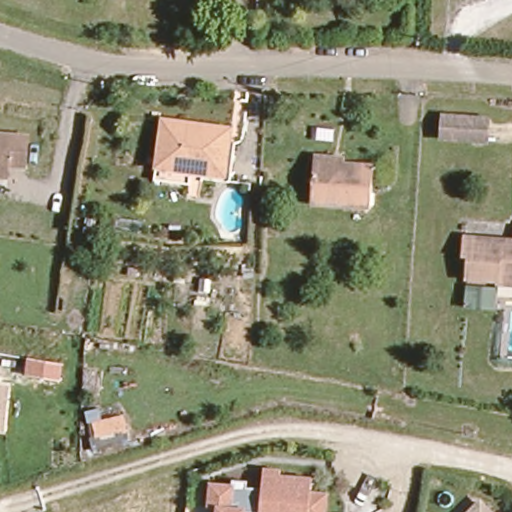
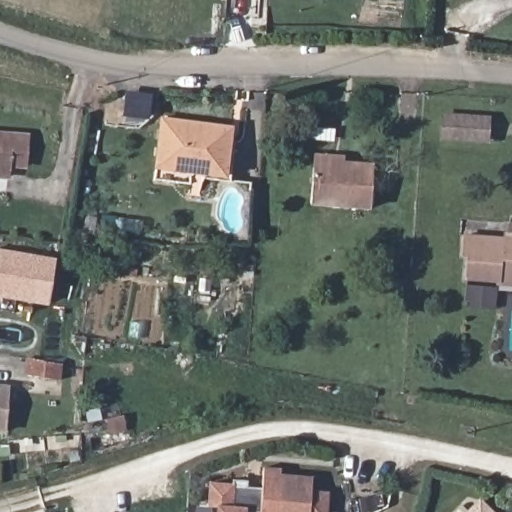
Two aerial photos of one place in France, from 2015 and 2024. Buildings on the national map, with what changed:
unchanged [(442,140),(444,117),(488,121),(486,145),(442,140)]
unchanged [(159,159),(164,122),(230,131),(225,175),(202,171),(158,165),(159,159)]
unchanged [(6,174),(0,172),(0,131),(30,135),(26,165),(8,162),(6,174)]
unchanged [(311,165),(312,157),(340,161),(339,167),(372,171),(366,211),(307,202),(311,165)]
unchanged [(460,231),(512,237),(512,286),(463,280),(460,231)]
new [(0,295),(0,251),(57,263),(49,306),(0,295)]
unchanged [(512,286),(512,301),(495,299),(493,311),(462,309),(463,280),(512,286)]
unchanged [(5,432),(0,431),(0,387),(10,388),(5,432)]
unchanged [(202,512),(205,479),(259,483),(261,470),(314,474),(313,488),(330,490),(328,512),(254,512),(255,509),(244,507),(243,512),(205,512),(202,512)]
unchanged [(480,497),(496,512),(465,512),(480,497)]

